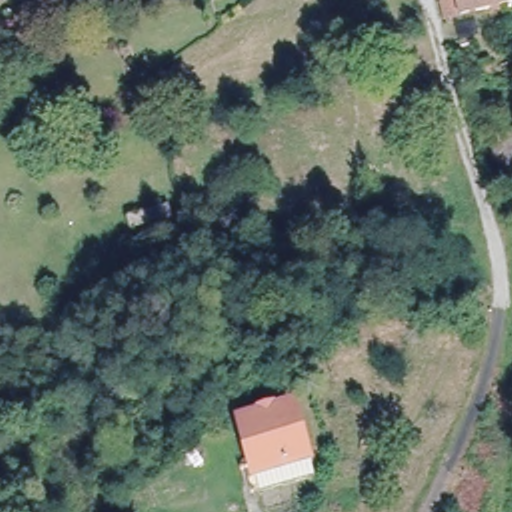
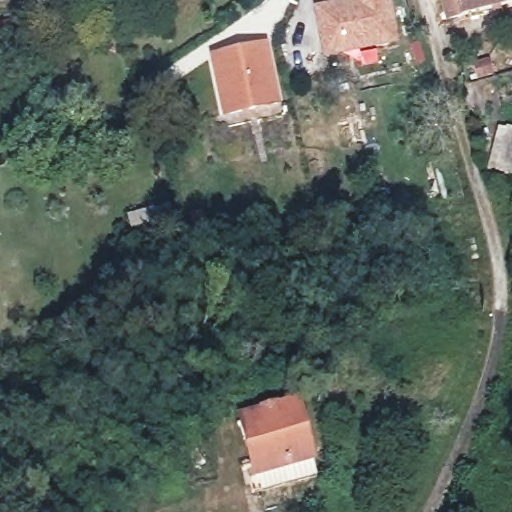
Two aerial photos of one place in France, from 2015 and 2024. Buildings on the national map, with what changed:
new [(326,55),(315,6),(346,0),(392,0),(399,41),(326,55)]
unchanged [(441,0),(499,0),(500,3),(446,16),(441,0)]
unchanged [(499,0),(512,0),(500,3),(499,0)]
new [(269,41),(282,103),(224,116),(210,53),(269,41)]
unchanged [(500,126),(512,130),(512,145),(509,154),(512,154),(512,162),(509,171),(487,163),(500,126)]
unchanged [(168,197),(171,212),(130,221),(126,207),(168,197)]
unchanged [(258,490),(257,486),(249,488),(247,478),(259,476),(253,449),(246,420),(301,407),(314,462),(318,476),(258,490)]

